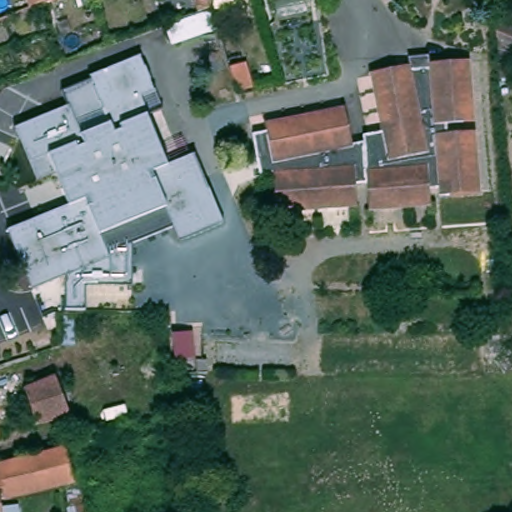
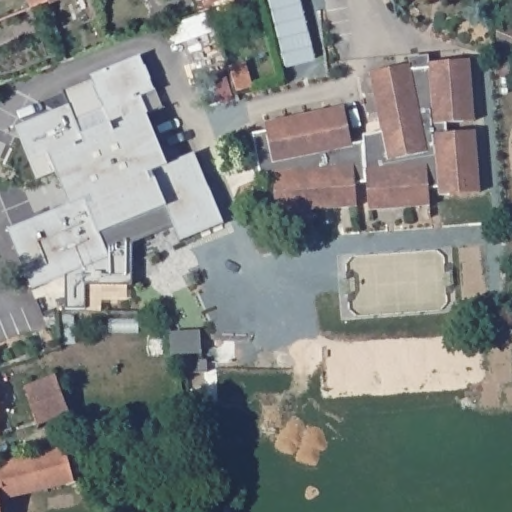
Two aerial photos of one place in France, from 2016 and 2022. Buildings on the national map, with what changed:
unchanged [(52,0),(45,2),(45,1),(25,9),(22,0),(52,0)]
unchanged [(214,7),(211,8),(208,0),(225,0),(226,3),(214,7)]
unchanged [(506,10),(512,13),(512,25),(502,20),(506,10)]
unchanged [(141,54),(157,91),(141,98),(149,115),(146,116),(166,164),(195,152),(228,230),(184,249),(168,213),(104,240),(115,265),(35,298),(5,228),(67,202),(55,174),(34,182),(11,129),(67,105),(81,135),(109,124),(89,75),(141,54)]
unchanged [(263,134),(261,125),(343,110),(350,146),(361,145),(361,137),(381,134),(369,74),(407,65),(407,58),(426,55),(427,62),(467,59),(472,120),(445,122),(446,132),(473,130),(480,193),(438,197),(438,189),(428,189),(429,207),(368,211),(365,184),(354,185),(355,207),(275,215),(271,180),(260,180),(255,165),(250,136),(263,134)]
unchanged [(71,346),(60,350),(57,315),(70,315),(71,346)]
unchanged [(17,391),(55,376),(71,415),(65,417),(39,425),(17,391)]
unchanged [(2,430),(0,431),(0,425),(2,430)]
unchanged [(8,498),(4,491),(1,485),(0,485),(0,464),(10,462),(49,455),(72,448),(80,480),(8,498)]
unchanged [(1,485),(4,491),(6,512),(0,512),(0,485),(1,485)]

